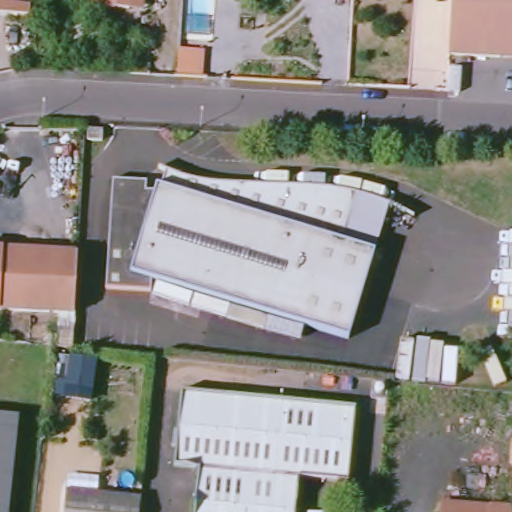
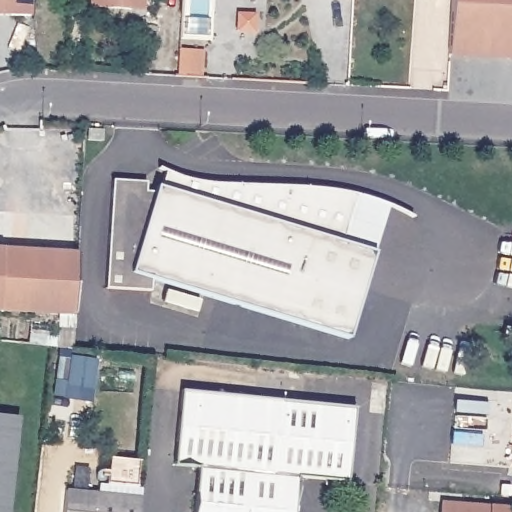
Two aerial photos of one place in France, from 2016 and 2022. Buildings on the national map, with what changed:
unchanged [(0,14),(0,0),(32,0),(32,15),(0,14)]
unchanged [(95,4),(95,0),(147,0),(147,6),(133,5),(95,4)]
unchanged [(449,55),(453,0),(512,0),(512,59),(449,55)]
unchanged [(103,136),(88,135),(89,124),(103,125),(103,136)]
unchanged [(338,239),(371,249),(346,335),(151,277),(150,288),(105,285),(113,176),(146,179),(146,189),(154,189),(156,183),(161,184),(166,168),(168,169),(178,173),(185,174),(191,176),(198,178),(203,179),(211,179),(214,180),(222,180),(223,180),(227,180),(234,180),(238,180),(244,181),(248,181),(252,181),(256,182),(259,182),(264,182),(266,182),(271,182),(274,182),(279,182),(284,182),(288,183),(294,183),(296,183),(304,184),(309,184),(313,184),(314,184),(319,185),(321,185),(327,186),(329,186),(332,187),(338,188),(339,188),(345,189),(350,189),(351,190),(338,239)]
unchanged [(338,239),(351,190),(356,190),(359,192),(362,193),(369,194),(372,195),(375,197),(376,197),(378,198),(386,200),(371,249),(338,239)]
unchanged [(73,315),(0,311),(0,251),(77,255),(73,315)]
unchanged [(196,465),(172,462),(179,388),(353,404),(346,479),(298,474),(293,512),(192,512),(196,465)]
unchanged [(0,416),(19,419),(10,512),(0,512),(0,416)]
unchanged [(138,512),(64,512),(65,493),(139,501),(138,512)]
unchanged [(512,512),(441,512),(442,504),(512,509),(512,512)]

